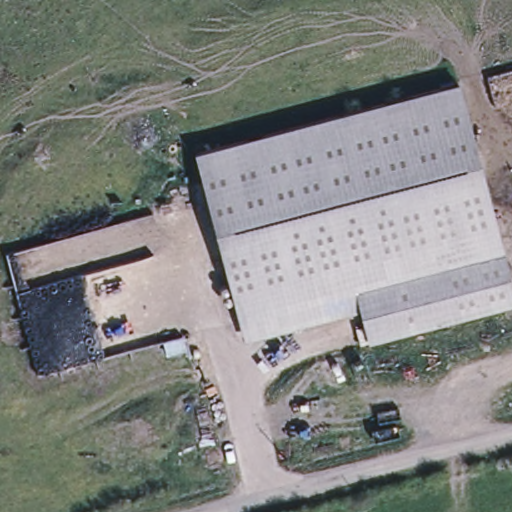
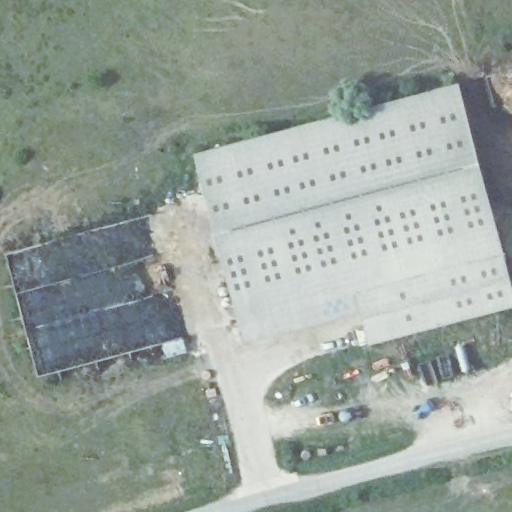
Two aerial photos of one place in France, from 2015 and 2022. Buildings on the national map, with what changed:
unchanged [(459,84),(502,252),(357,291),(241,321),(198,154),(459,84)]
unchanged [(512,288),(512,305),(370,342),(357,291),(502,252),(512,288)]

